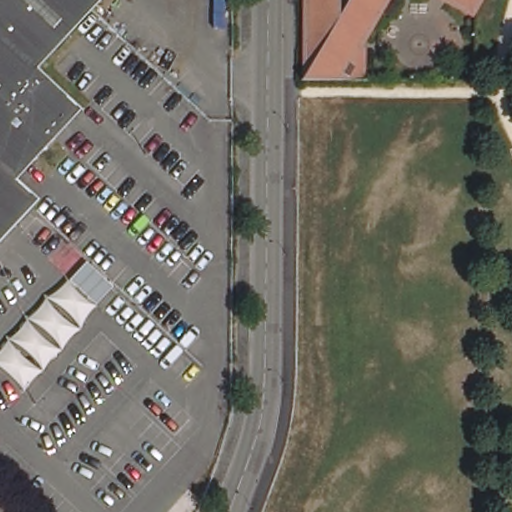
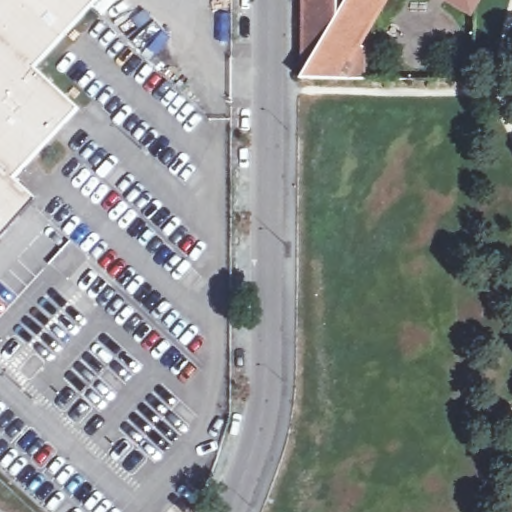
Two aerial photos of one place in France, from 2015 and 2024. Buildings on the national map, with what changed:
unchanged [(37,69),(79,110),(15,179),(36,200),(0,239),(0,0),(101,0),(37,69)]
unchanged [(346,41),(356,47),(356,79),(291,78),(298,65),(299,0),(373,0),(346,41)]
unchanged [(463,9),(447,0),(466,0),(463,9)]

